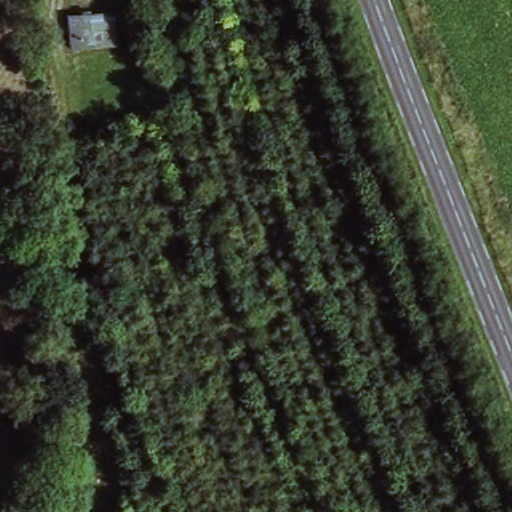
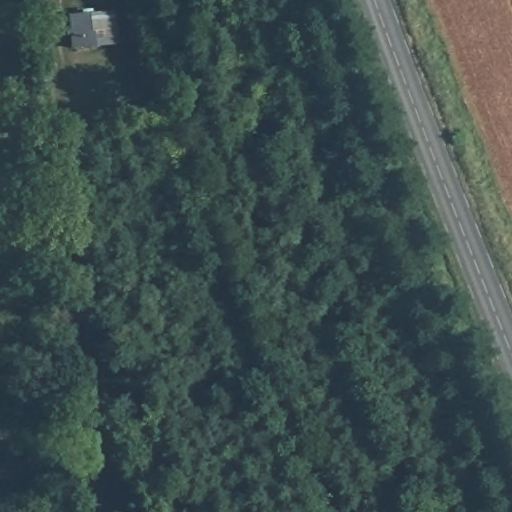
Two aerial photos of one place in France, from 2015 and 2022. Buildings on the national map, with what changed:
unchanged [(118,8),(119,29),(97,31),(97,46),(70,48),(68,12),(118,8)]

